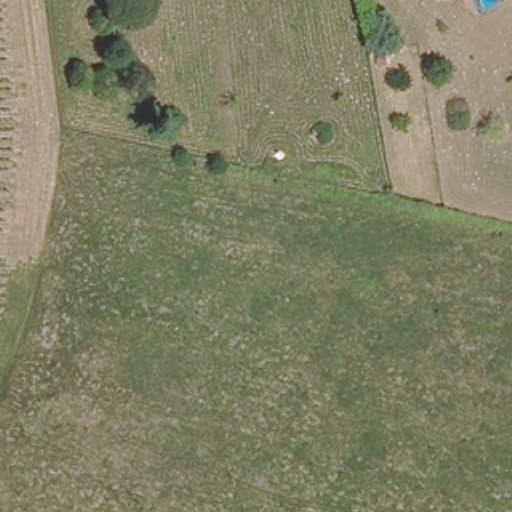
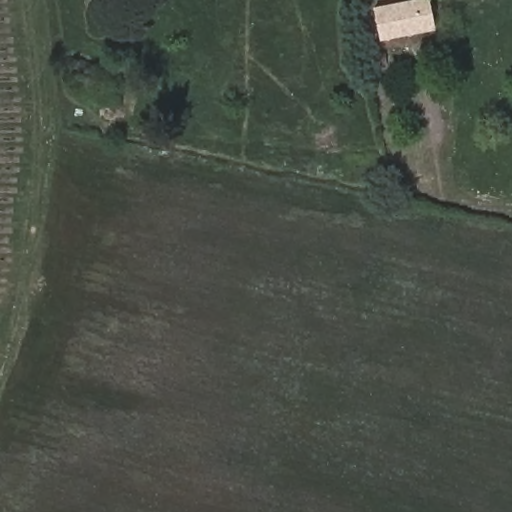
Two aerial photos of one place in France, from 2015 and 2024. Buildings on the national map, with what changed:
new [(381,41),(375,8),(415,0),(428,0),(434,31),(381,41)]

